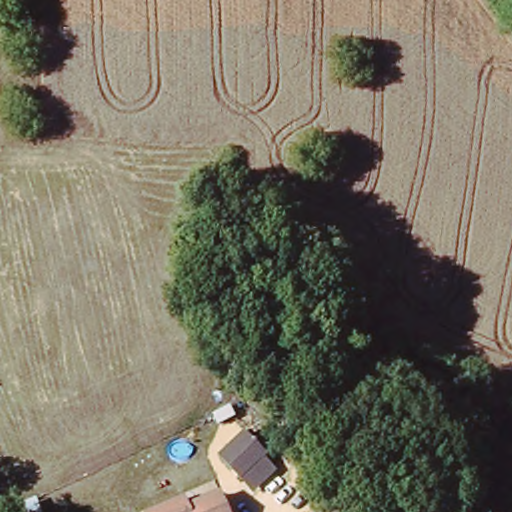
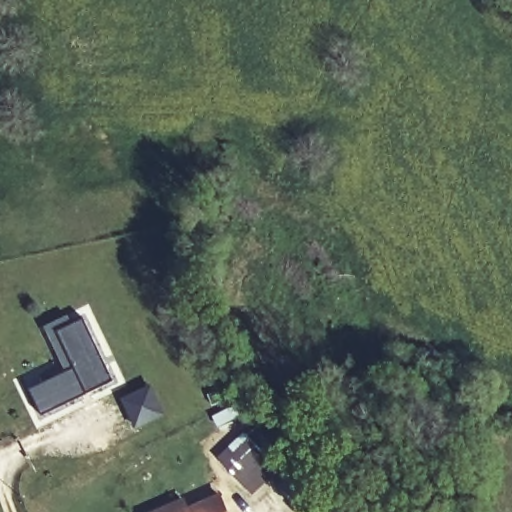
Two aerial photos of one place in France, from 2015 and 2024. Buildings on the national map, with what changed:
new [(28,389),(64,372),(45,329),(70,317),(73,323),(88,316),(118,381),(41,419),(28,389)]
unchanged [(279,470),(251,494),(218,454),(241,432),(279,470)]
unchanged [(186,495),(190,505),(223,492),(230,512),(144,512),(143,511),(186,495)]

